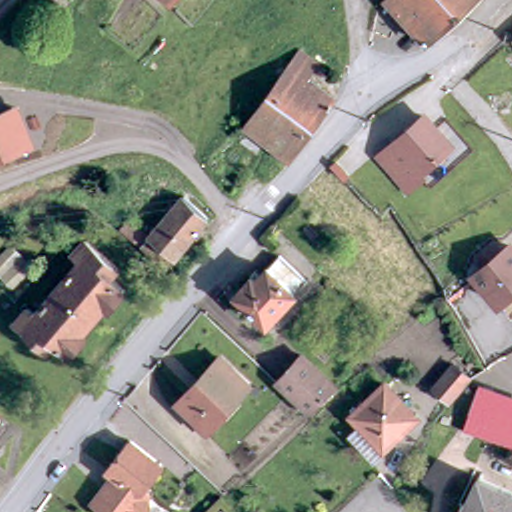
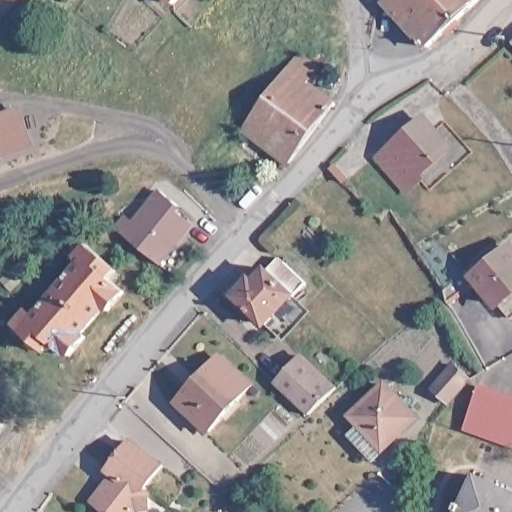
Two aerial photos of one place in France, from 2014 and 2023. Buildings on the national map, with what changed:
unchanged [(174,1),(172,0),(175,0),(174,1)]
unchanged [(387,0),(477,0),(427,44),(387,0)]
unchanged [(242,130),(288,68),(298,54),(316,68),(307,81),(334,100),(288,164),(242,130)]
unchanged [(35,150),(0,165),(0,114),(19,105),(35,150)]
unchanged [(417,175),(420,178),(407,189),(380,159),(423,120),(447,146),(417,175)]
unchanged [(127,217),(137,205),(157,223),(191,185),(215,206),(174,257),(127,217)]
unchanged [(35,313),(79,258),(72,252),(84,237),(117,265),(109,275),(123,287),(106,307),(102,304),(81,328),(87,333),(70,351),(55,339),(48,348),(14,321),(27,307),(35,313)]
unchanged [(477,281),(512,251),(512,252),(512,296),(500,307),(477,281)]
unchanged [(247,286),(270,259),(300,285),(263,329),(229,301),(245,283),(247,286)]
unchanged [(336,383),(309,409),(274,378),(301,351),(336,383)]
unchanged [(192,384),(221,352),(251,379),(209,425),(177,397),(190,382),(192,384)]
unchanged [(449,399),(432,386),(452,361),(469,374),(449,399)]
unchanged [(352,406),(384,374),(415,406),(372,448),(349,424),(360,413),(352,406)]
unchanged [(512,444),(465,429),(478,383),(512,397),(512,444)]
unchanged [(4,421),(0,427),(0,419),(4,421)]
unchanged [(107,475),(130,446),(162,470),(142,494),(147,498),(147,512),(101,512),(94,506),(115,480),(107,475)]
unchanged [(457,496),(460,498),(474,473),(512,491),(512,512),(453,512),(456,507),(452,505),(457,496)]

